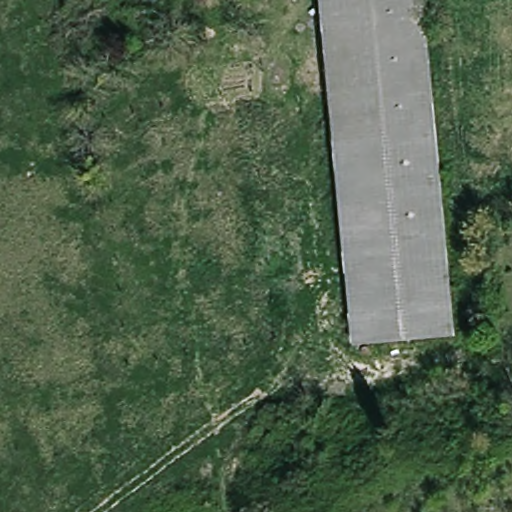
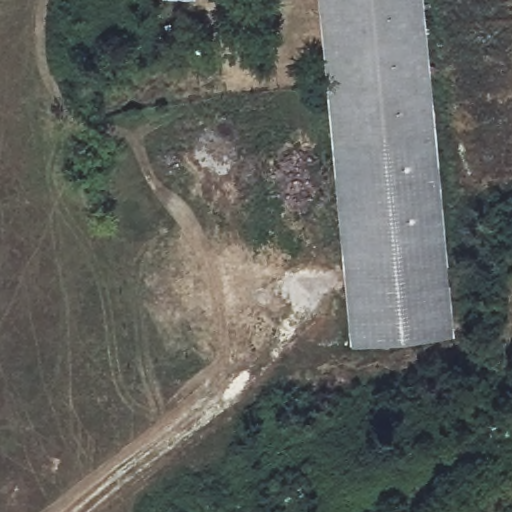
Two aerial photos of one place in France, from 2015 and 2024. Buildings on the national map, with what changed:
unchanged [(413,0),(440,336),(341,345),(315,0),(413,0)]

